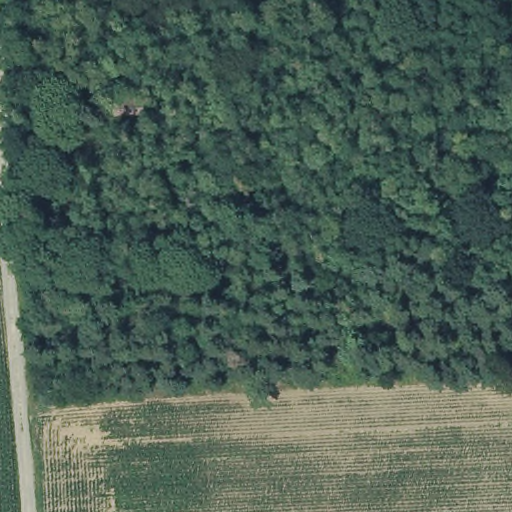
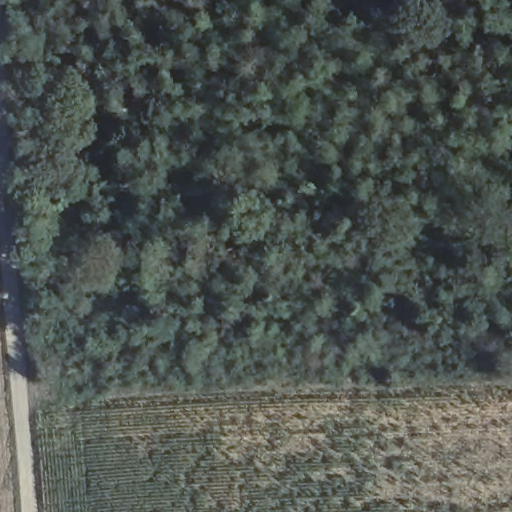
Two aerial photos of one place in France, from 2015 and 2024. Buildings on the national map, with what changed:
unchanged [(150,99),(151,111),(115,113),(115,101),(150,99)]

